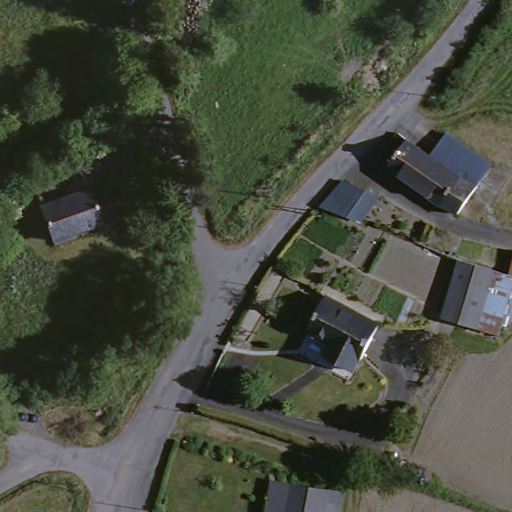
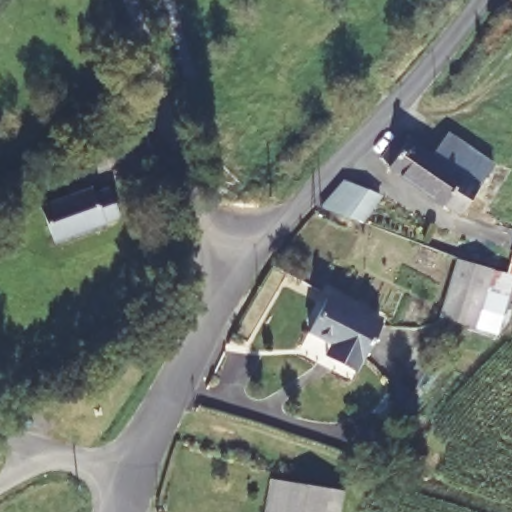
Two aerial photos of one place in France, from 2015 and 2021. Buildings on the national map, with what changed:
unchanged [(397,134),(410,143),(426,116),(479,157),(462,180),(478,190),(459,216),(378,160),(397,134)]
unchanged [(346,182),(377,196),(355,227),(316,213),(346,182)]
unchanged [(121,218),(54,241),(41,207),(92,189),(95,195),(111,190),(121,218)]
unchanged [(512,274),(498,269),(463,259),(459,257),(466,237),(512,250),(512,274)]
unchanged [(463,259),(498,269),(482,329),(446,318),(463,259)]
unchanged [(380,325),(354,371),(325,356),(330,345),(309,332),(328,297),(380,325)]
unchanged [(345,498),(343,512),(271,512),(275,485),(345,498)]

